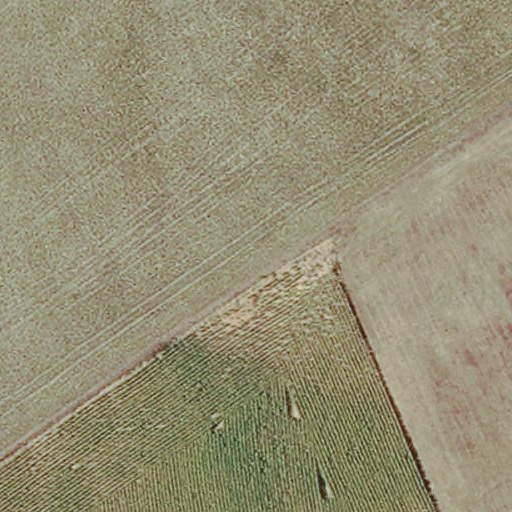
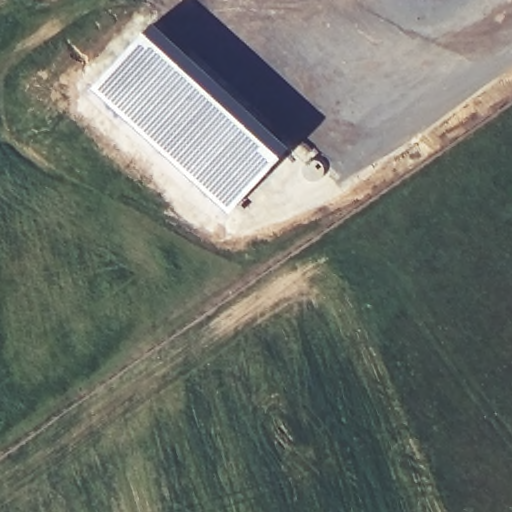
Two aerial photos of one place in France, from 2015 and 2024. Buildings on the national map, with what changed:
new [(141,27),(278,146),(219,214),(82,96),(141,27)]

